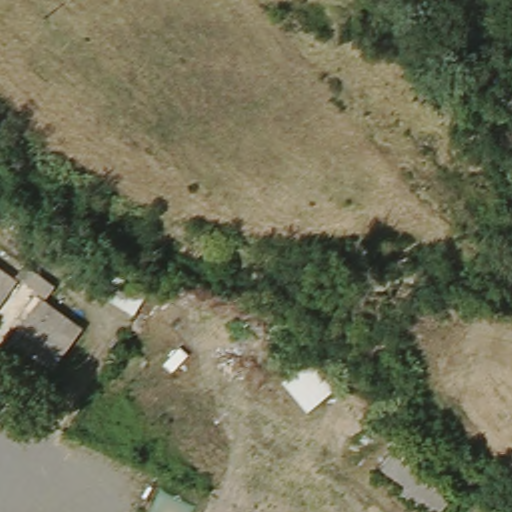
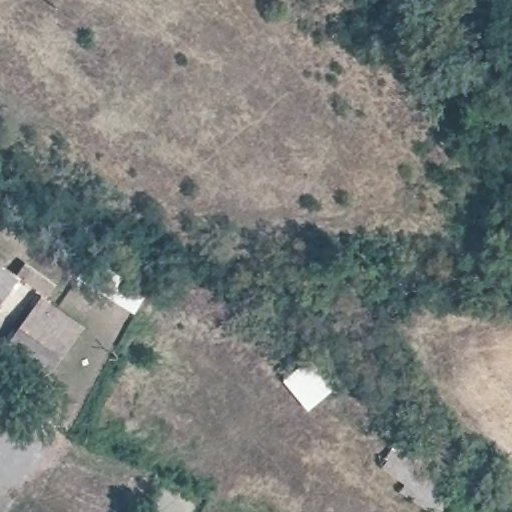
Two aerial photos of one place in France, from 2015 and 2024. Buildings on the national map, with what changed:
unchanged [(91,254),(151,289),(134,315),(75,277),(91,254)]
unchanged [(51,290),(44,301),(14,279),(20,269),(51,290)]
unchanged [(10,286),(0,300),(0,280),(10,286)]
unchanged [(13,332),(35,304),(75,332),(48,368),(29,356),(7,341),(13,332)]
unchanged [(309,360),(340,393),(313,415),(279,384),(309,360)]
unchanged [(456,486),(444,512),(430,512),(393,488),(402,477),(380,465),(395,445),(456,486)]

